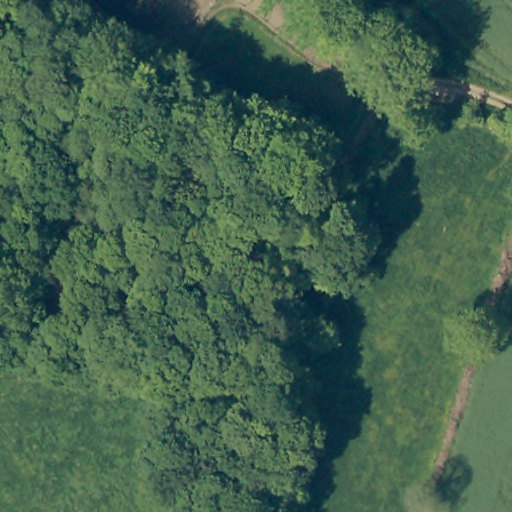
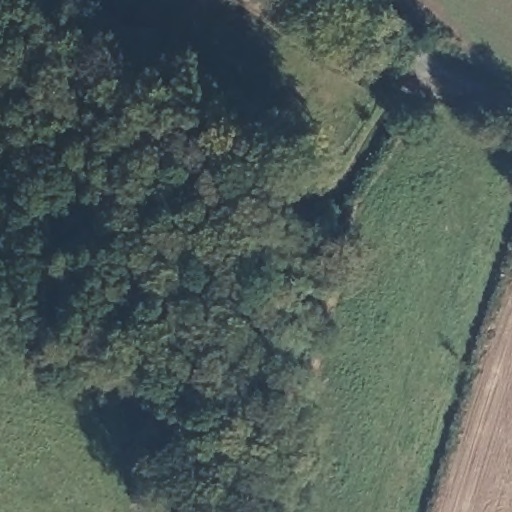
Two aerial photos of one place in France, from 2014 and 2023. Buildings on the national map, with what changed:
unchanged [(119,328),(118,300),(151,298),(152,326),(119,328)]

